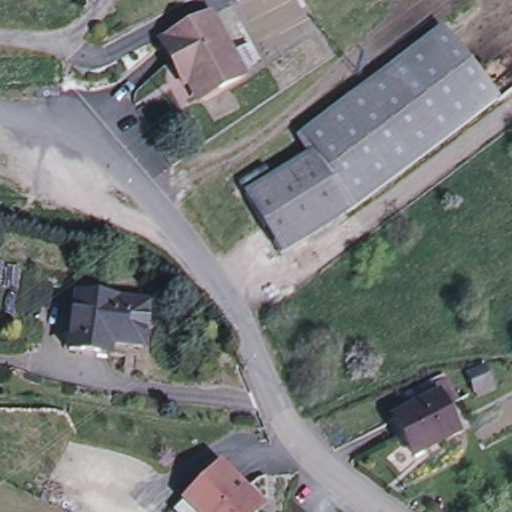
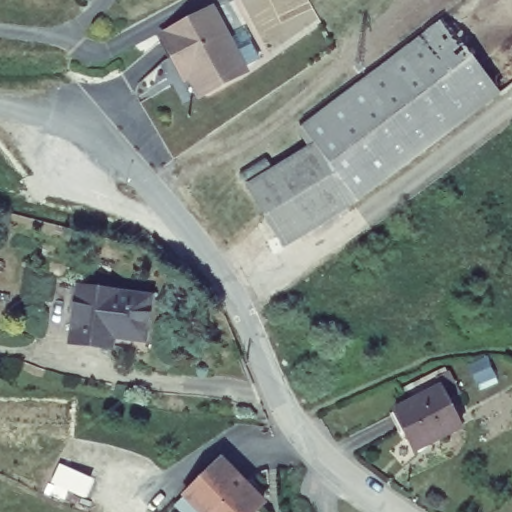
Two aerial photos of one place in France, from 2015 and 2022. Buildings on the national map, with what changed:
unchanged [(175,56),(164,36),(212,11),(244,72),(202,94),(180,54),(175,56)]
unchanged [(479,64),(371,156),(376,170),(316,225),(284,246),(247,187),(312,147),(300,129),(444,19),(479,64)]
unchanged [(501,93),(355,201),(316,225),(376,170),(371,156),(479,64),(501,93)]
unchanged [(152,298),(146,342),(112,338),(112,349),(72,343),(79,288),(152,298)]
unchanged [(441,387),(462,427),(414,450),(394,410),(441,387)]
unchanged [(222,461),(264,504),(255,512),(203,512),(186,495),(222,461)]

